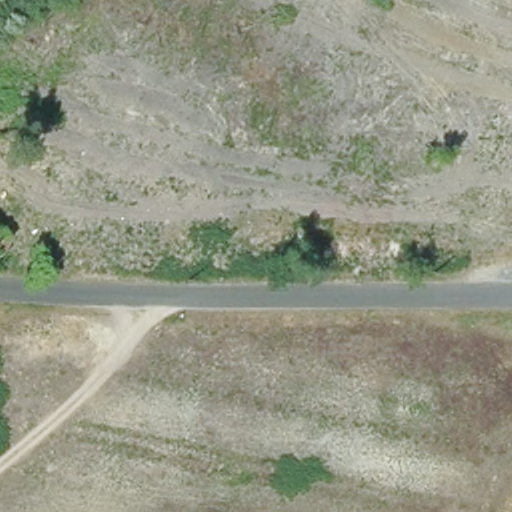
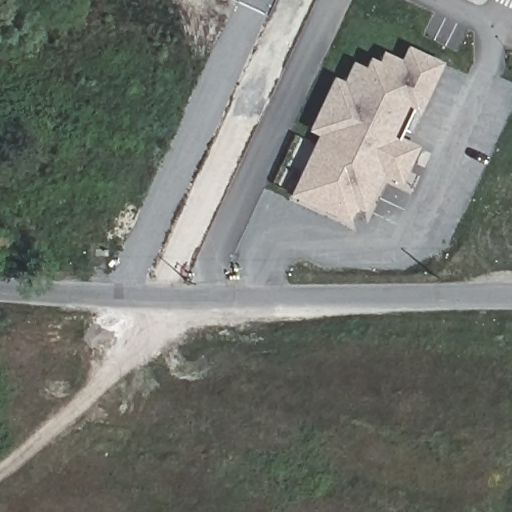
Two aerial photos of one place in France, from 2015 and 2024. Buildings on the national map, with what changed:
new [(418,107),(405,102),(389,137),(416,148),(399,182),(382,175),(364,212),(352,206),(344,222),(288,197),(314,135),(305,131),(329,78),(339,83),(348,64),(359,68),(363,57),(374,62),(378,51),(398,60),(404,46),(439,61),(418,107)]
demolished [(0,239),(0,235),(3,237),(0,239)]

